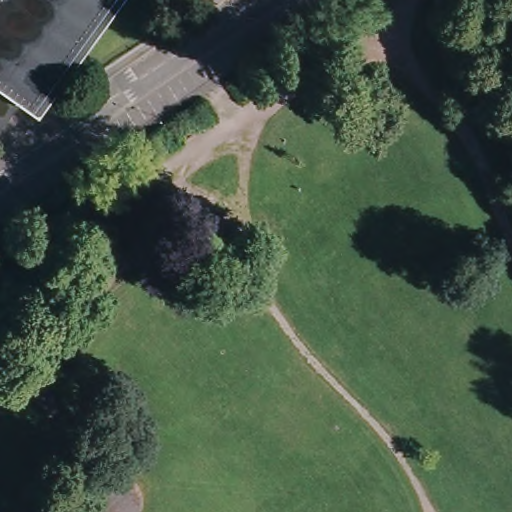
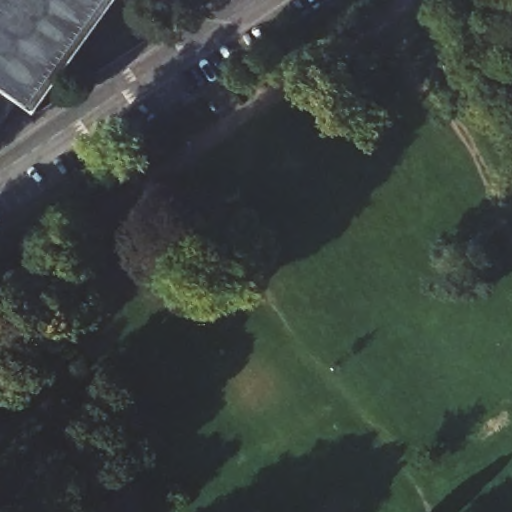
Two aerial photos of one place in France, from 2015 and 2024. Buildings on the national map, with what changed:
unchanged [(38,112),(23,101),(0,132),(0,0),(122,0),(38,112)]

